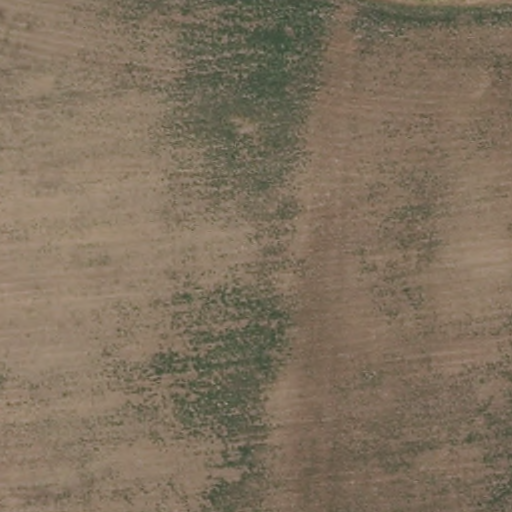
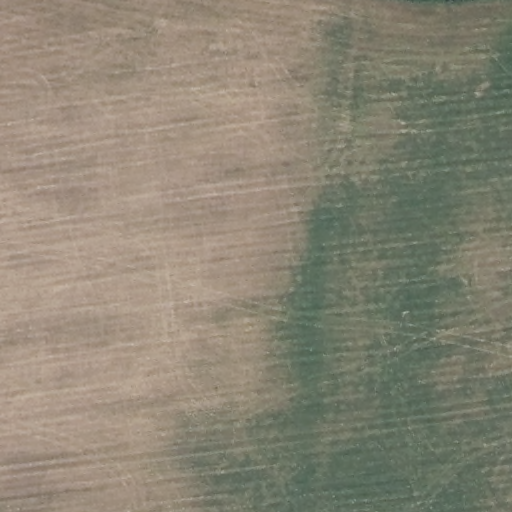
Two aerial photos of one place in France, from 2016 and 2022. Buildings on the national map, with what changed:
[]

